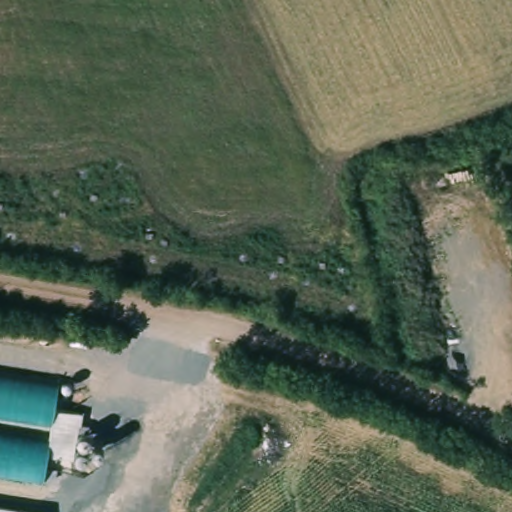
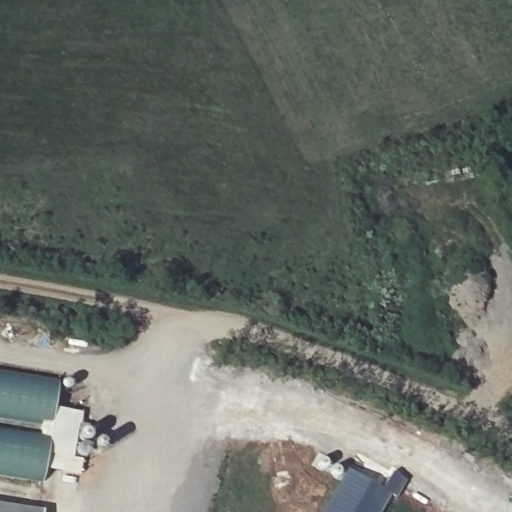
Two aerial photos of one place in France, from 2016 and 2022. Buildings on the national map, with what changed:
unchanged [(50,404),(93,411),(87,455),(66,452),(60,481),(0,472),(0,427),(47,434),(48,418),(0,411),(0,370),(55,378),(50,404)]
new [(382,489),(393,472),(405,480),(396,497),(390,495),(380,512),(322,512),(346,470),(382,489)]
unchanged [(0,512),(0,504),(43,510),(43,512),(0,512)]

